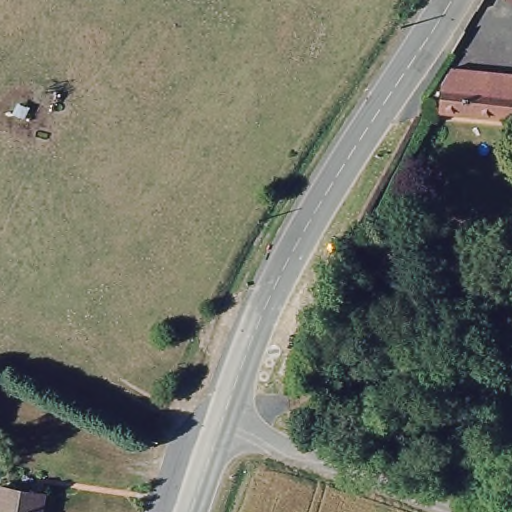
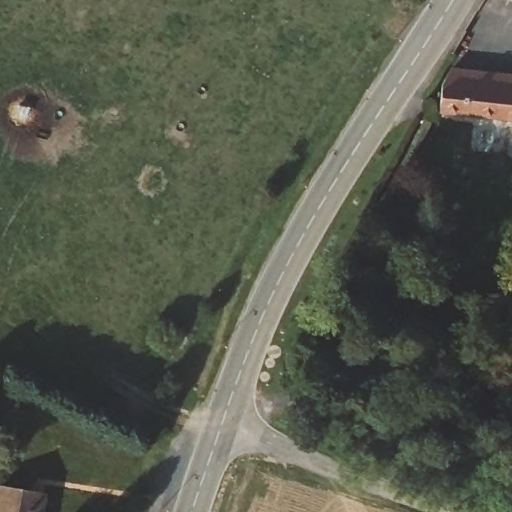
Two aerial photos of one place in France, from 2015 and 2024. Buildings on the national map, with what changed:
unchanged [(512,3),(507,0),(512,0),(512,3)]
unchanged [(512,74),(512,117),(455,105),(462,63),(512,74)]
unchanged [(45,500),(42,512),(0,512),(0,498),(2,488),(45,500)]

